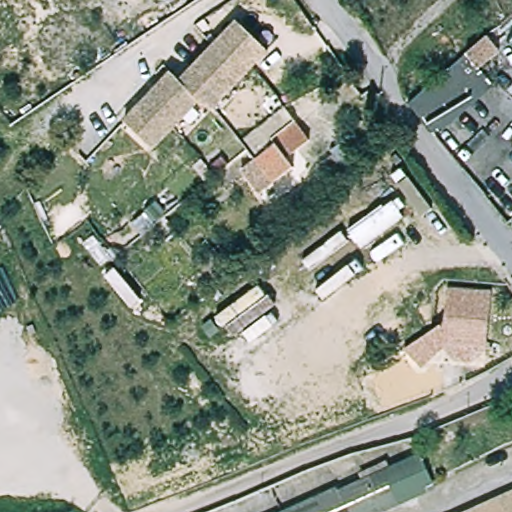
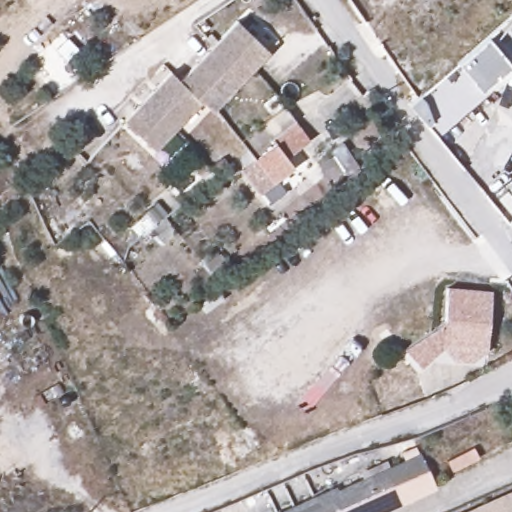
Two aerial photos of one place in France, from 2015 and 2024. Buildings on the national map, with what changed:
unchanged [(172,75),(181,82),(238,22),(271,55),(215,113),(207,106),(161,155),(129,121),(172,75)]
unchanged [(482,35),(488,41),(477,50),(487,59),(475,70),(487,82),(428,133),(404,104),(482,35)]
unchanged [(289,129),(304,145),(281,164),(288,172),(254,199),(236,175),(270,149),(267,145),(289,129)]
unchanged [(455,362),(456,352),(450,352),(437,362),(435,359),(425,366),(422,359),(414,359),(410,351),(445,326),(447,310),(448,295),(463,296),(490,298),(487,354),(472,353),(472,363),(455,362)]
unchanged [(338,488),(340,491),(420,455),(434,483),(368,512),(284,512),(338,488)]
unchanged [(512,500),(512,512),(484,512),(512,500)]

